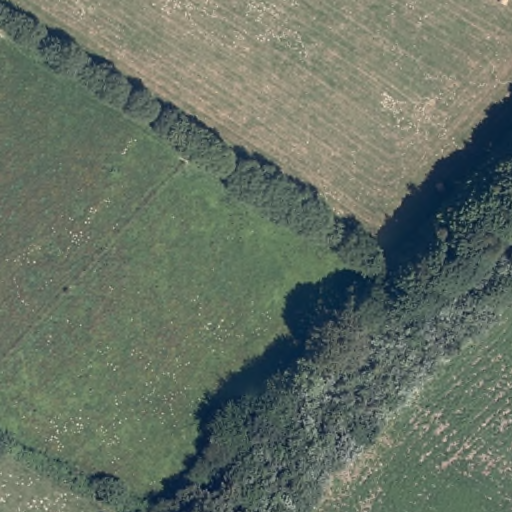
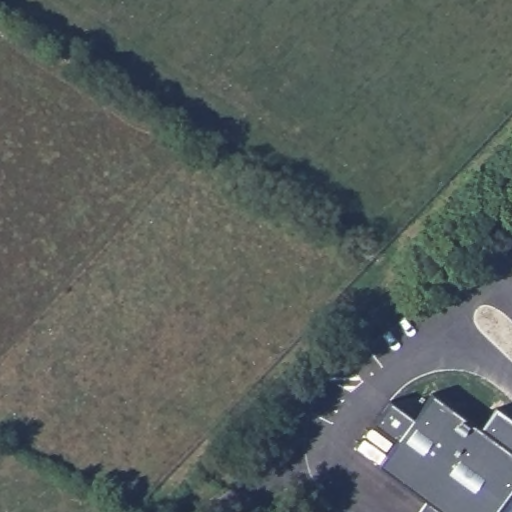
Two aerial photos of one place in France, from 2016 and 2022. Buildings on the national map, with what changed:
new [(497,407),(512,418),(512,512),(421,512),(427,502),(380,467),(396,441),(373,423),(390,400),(413,418),(433,392),(481,429),(497,407)]

